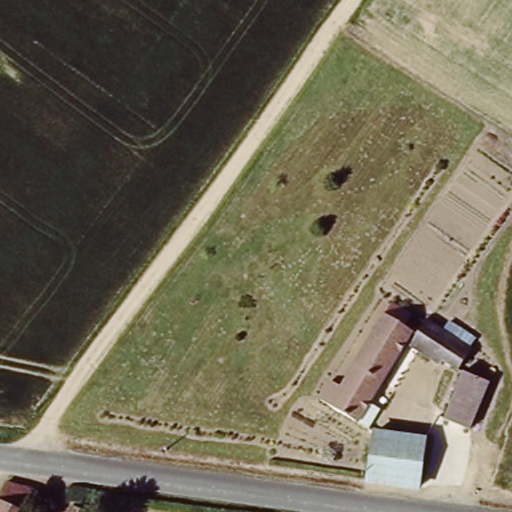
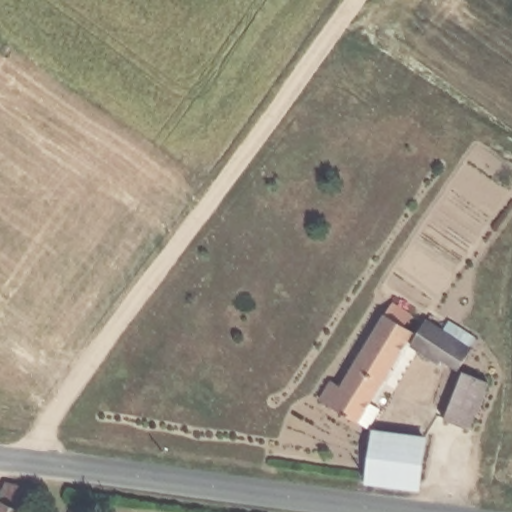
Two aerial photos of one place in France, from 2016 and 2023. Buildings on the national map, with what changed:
unchanged [(387,305),(409,316),(402,330),(409,333),(357,425),(318,403),(328,385),(339,390),(387,305)]
unchanged [(453,371),(437,360),(435,365),(406,348),(420,323),(444,336),(466,351),(453,371)]
unchanged [(444,422),(461,372),(488,382),(490,383),(475,432),(464,429),(444,422)]
unchanged [(371,483),(378,438),(426,445),(419,490),(371,483)]
unchanged [(6,480),(34,492),(28,506),(35,510),(33,512),(0,512),(0,491),(6,480)]
unchanged [(79,507),(89,512),(76,512),(79,507)]

